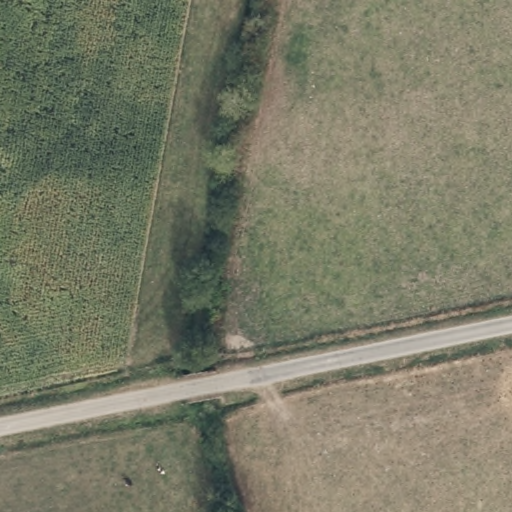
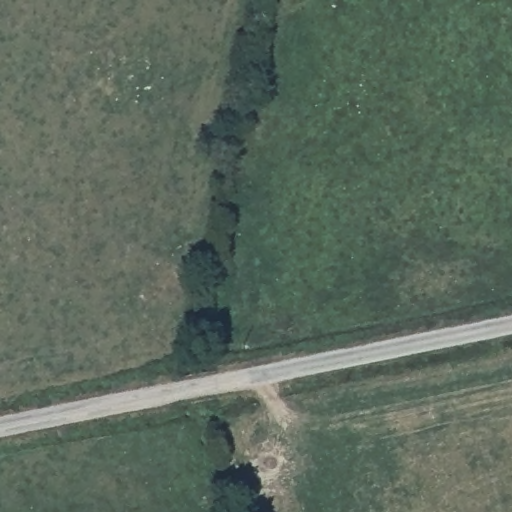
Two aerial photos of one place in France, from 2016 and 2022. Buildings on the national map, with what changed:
[]

